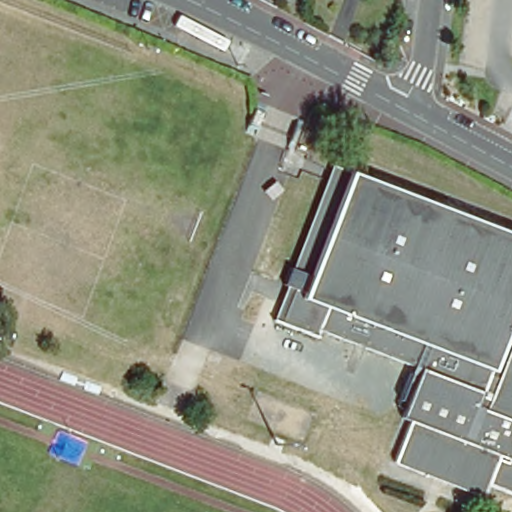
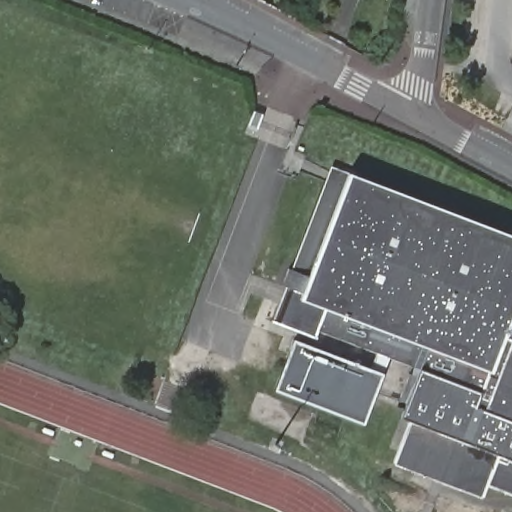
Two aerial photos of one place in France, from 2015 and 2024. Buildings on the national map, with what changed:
unchanged [(261,114),(263,115),(262,116),(257,129),(249,126),(254,111),(261,114)]
unchanged [(500,456),(484,497),(396,463),(411,422),(403,419),(421,371),(319,332),(316,338),(275,322),(287,287),(284,285),(290,269),(311,277),(348,180),(512,242),(512,460),(500,456)]
new [(276,390),(294,340),(381,374),(363,424),(276,390)]

